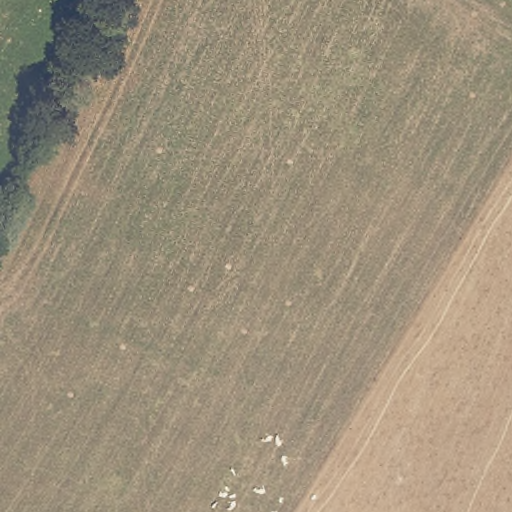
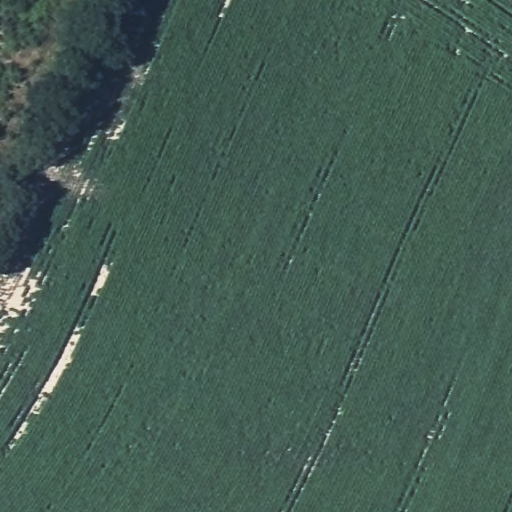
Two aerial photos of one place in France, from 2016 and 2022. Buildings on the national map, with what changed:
[]

